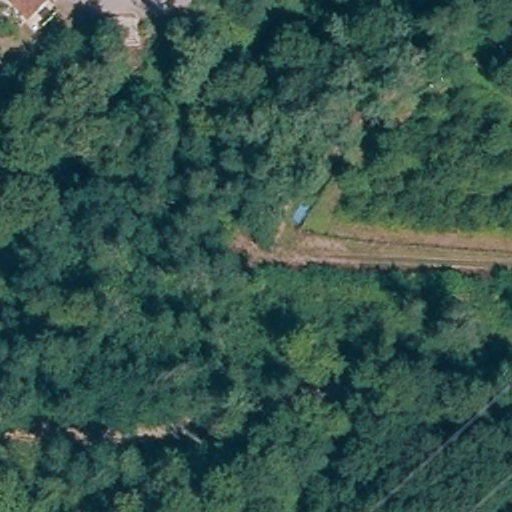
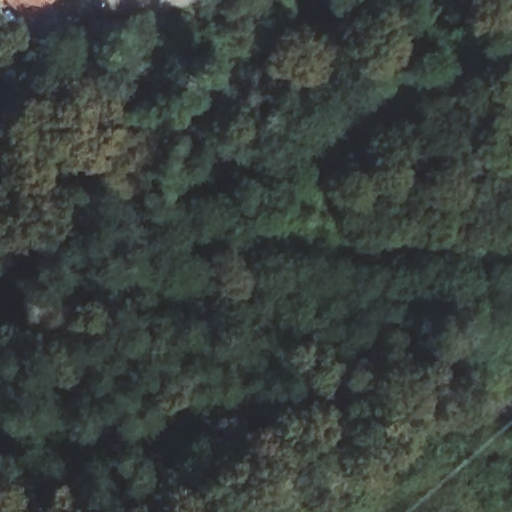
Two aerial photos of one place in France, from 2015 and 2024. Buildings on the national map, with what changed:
unchanged [(0,7),(0,0),(43,0),(15,25),(0,7)]

